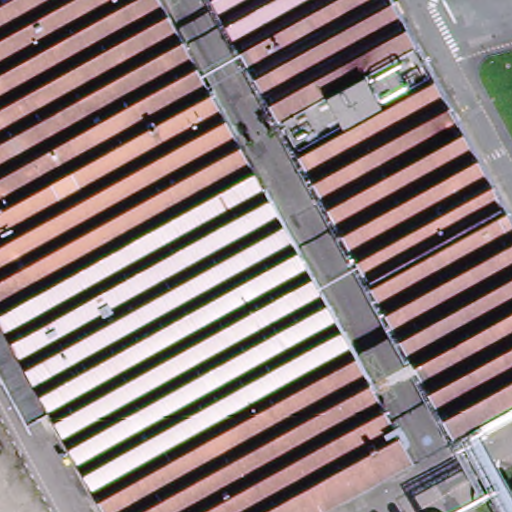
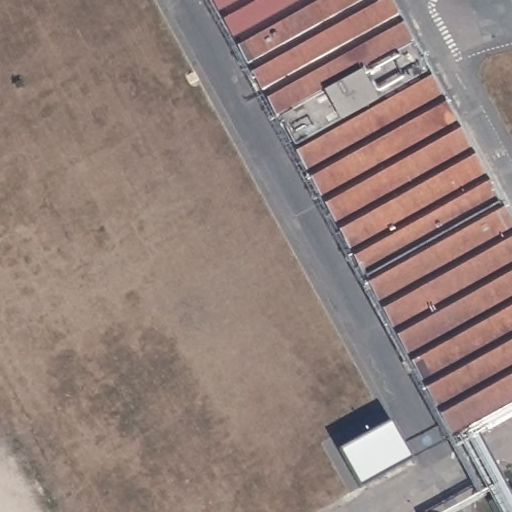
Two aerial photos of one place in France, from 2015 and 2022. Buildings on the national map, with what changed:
demolished [(407,461),(315,512),(105,512),(50,410),(26,423),(0,374),(0,0),(157,0),(407,461)]
unchanged [(512,249),(512,405),(493,415),(500,427),(460,449),(452,436),(445,440),(207,0),(378,0),(512,249)]
new [(391,421),(413,459),(361,487),(340,450),(391,421)]
unchanged [(512,512),(502,512),(492,495),(512,484),(512,512)]

